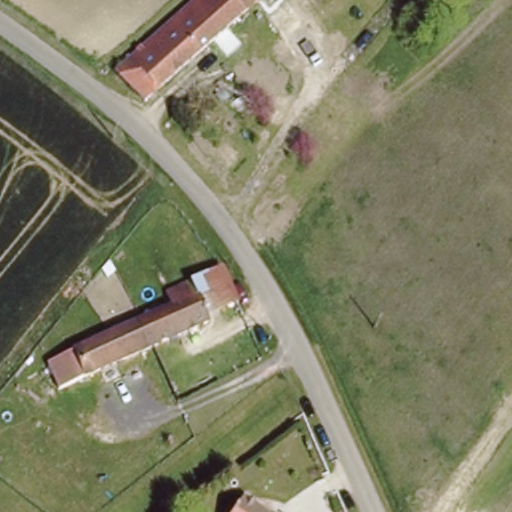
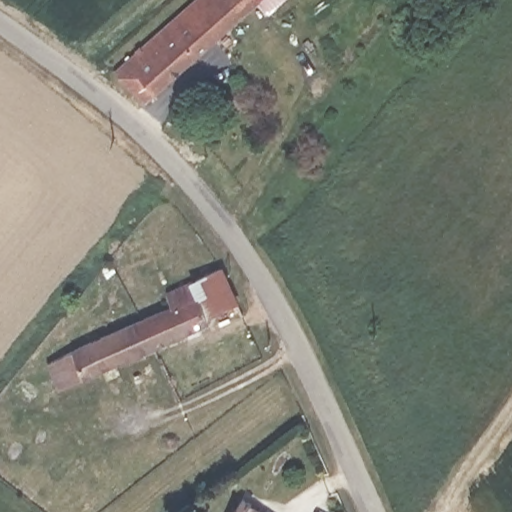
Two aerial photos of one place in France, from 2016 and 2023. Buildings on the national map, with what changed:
unchanged [(118,79),(204,0),(222,0),(242,22),(145,109),(118,79)]
unchanged [(267,0),(242,22),(222,0),(267,0)]
unchanged [(235,299),(203,316),(186,284),(218,267),(235,299)]
unchanged [(186,284),(203,316),(207,323),(197,328),(201,334),(188,342),(184,334),(63,395),(56,396),(42,368),(51,368),(128,327),(166,307),(161,297),(186,284)]
unchanged [(243,504),(255,512),(238,512),(243,504)]

